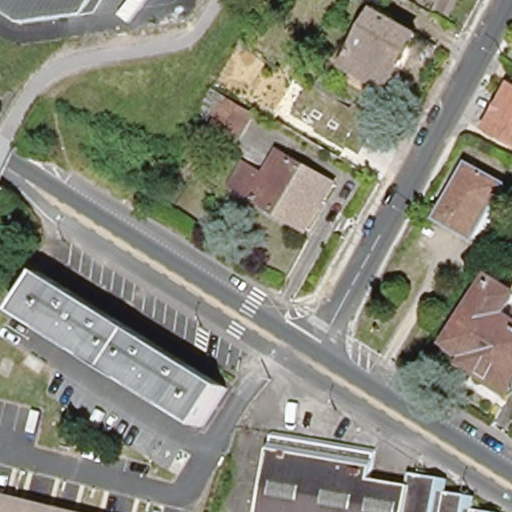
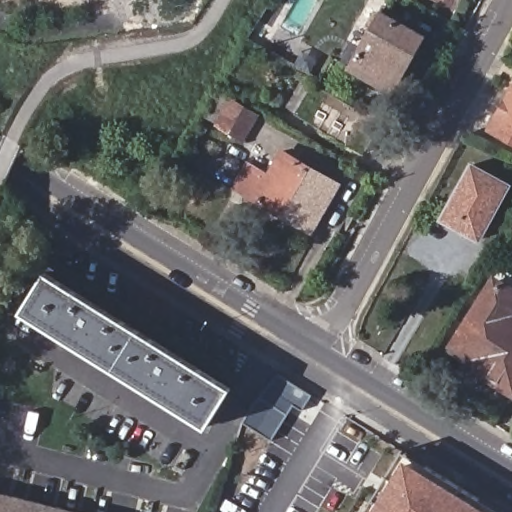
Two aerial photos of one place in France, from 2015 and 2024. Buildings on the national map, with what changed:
unchanged [(62,23),(32,26),(0,5),(0,0),(108,0),(96,19),(62,23)]
unchanged [(362,49),(364,50),(384,17),(421,38),(393,86),(379,79),(377,83),(353,70),(358,61),(355,60),(362,49)]
unchanged [(492,129),(512,93),(512,140),(492,129)]
unchanged [(247,136),(222,121),(235,100),(259,114),(247,136)]
unchanged [(304,225),(249,193),(240,188),(250,170),(270,181),(286,155),(339,184),(329,202),(313,230),(304,225)]
unchanged [(454,206),(478,164),(512,181),(512,182),(482,237),(462,226),(447,219),(454,206)]
unchanged [(49,272),(229,387),(205,425),(24,307),(49,272)]
unchanged [(459,349),(502,278),(512,284),(512,305),(509,309),(512,311),(512,382),(459,349)]
new [(274,373),(310,395),(303,410),(293,404),(273,440),(244,423),(274,373)]
demolished [(273,429),(329,438),(309,509),(308,512),(259,512),(273,429)]
demolished [(309,509),(329,438),(378,446),(373,475),(381,477),(371,512),(308,512),(309,509)]
new [(404,458),(490,512),(370,512),(404,458)]
demolished [(414,482),(415,471),(445,477),(443,490),(473,496),(471,506),(474,506),(472,512),(371,512),(381,477),(414,482)]
unchanged [(0,487),(97,512),(0,512),(0,487)]
demolished [(499,512),(472,512),(474,506),(499,512)]

